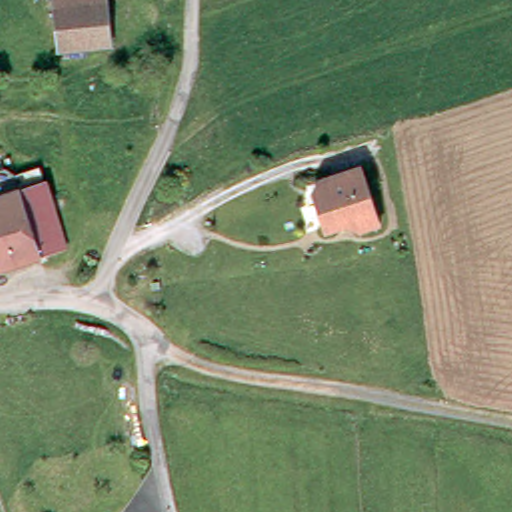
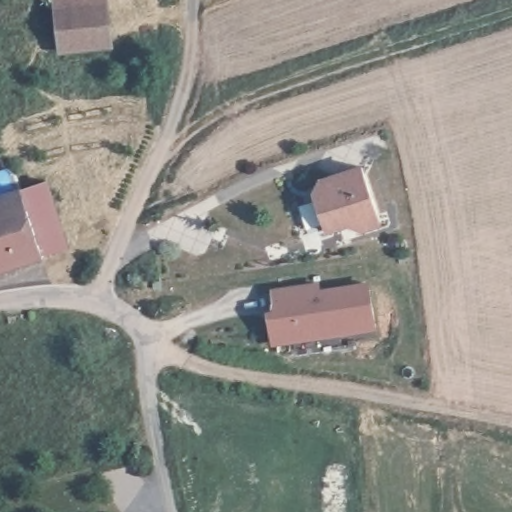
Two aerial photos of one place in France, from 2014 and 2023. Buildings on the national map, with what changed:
unchanged [(115,34),(65,41),(61,0),(112,0),(115,34)]
unchanged [(67,238),(41,246),(0,259),(0,185),(2,184),(10,182),(7,173),(20,169),(35,164),(37,173),(48,171),(67,238)]
unchanged [(314,192),(325,178),(366,167),(382,223),(360,229),(358,219),(325,228),(314,192)]
new [(265,309),(272,308),(270,289),(320,282),(321,288),(370,282),(376,332),(270,346),(265,309)]
unchanged [(0,327),(0,320),(21,316),(22,324),(0,327)]

